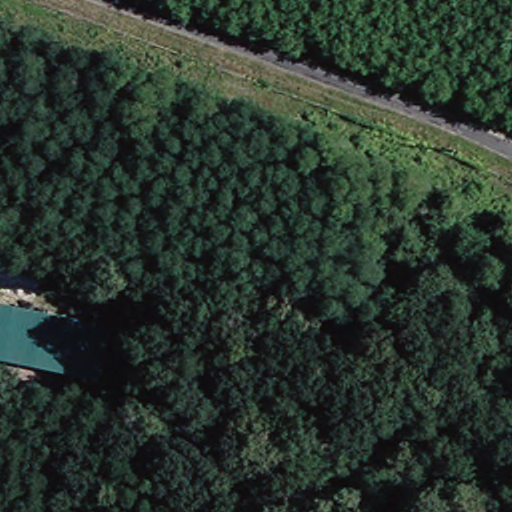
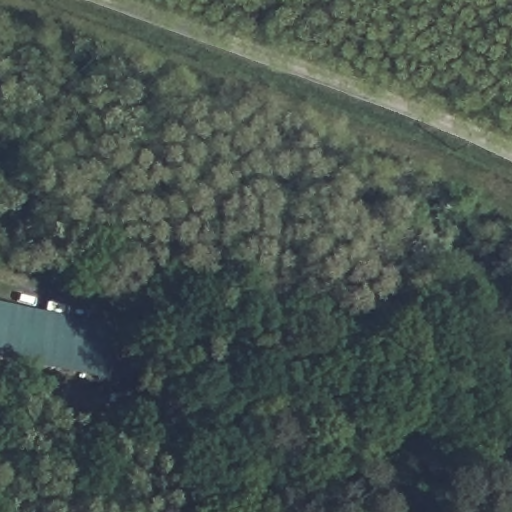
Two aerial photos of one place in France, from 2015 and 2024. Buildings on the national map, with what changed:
unchanged [(99,385),(0,365),(0,308),(110,329),(99,385)]

